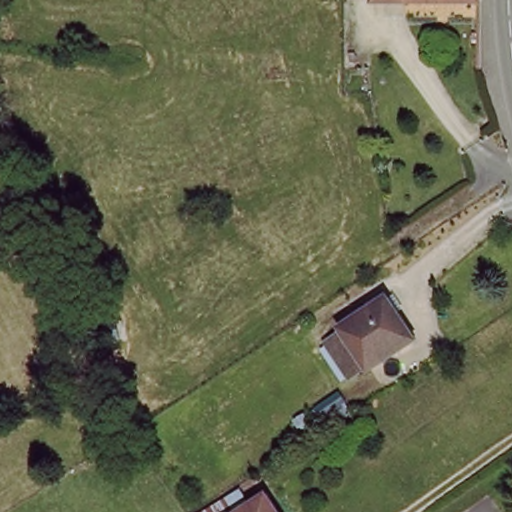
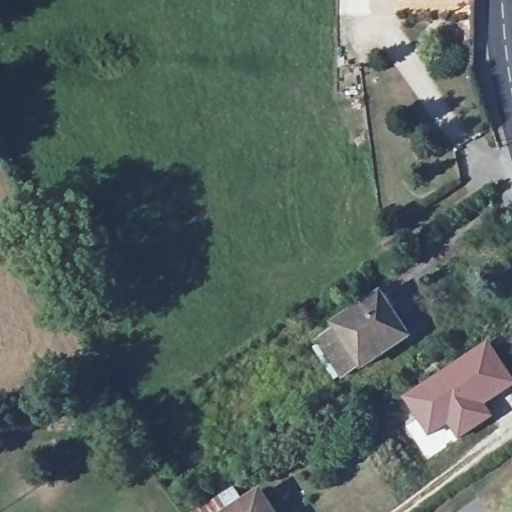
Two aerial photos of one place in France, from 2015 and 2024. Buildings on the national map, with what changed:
unchanged [(322,345),(341,333),(339,331),(382,301),(407,340),(381,358),(384,363),(365,376),(362,371),(347,381),(322,345)]
new [(488,341),(512,377),(512,388),(486,405),(493,417),(457,441),(447,427),(427,438),(400,396),(488,341)]
unchanged [(272,512),(232,512),(260,493),(272,512)]

